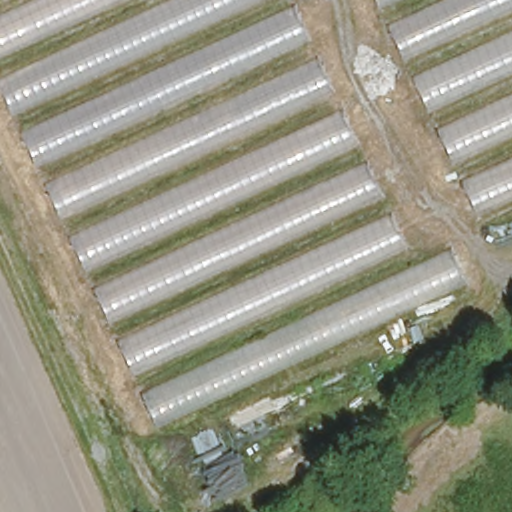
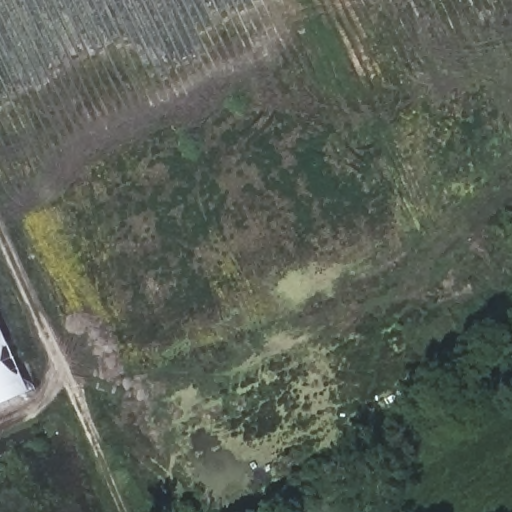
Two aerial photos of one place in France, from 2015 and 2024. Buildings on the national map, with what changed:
demolished [(454,247),(468,284),(157,427),(0,90),(0,0),(290,0),(413,264),(454,247)]
demolished [(376,0),(512,0),(512,201),(477,217),(376,0)]
new [(0,325),(30,391),(0,403),(0,325)]

